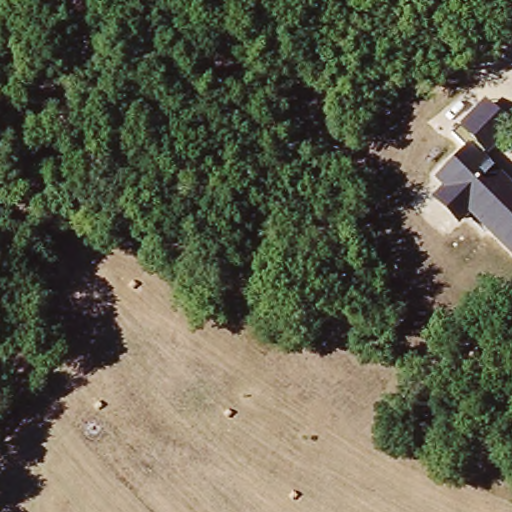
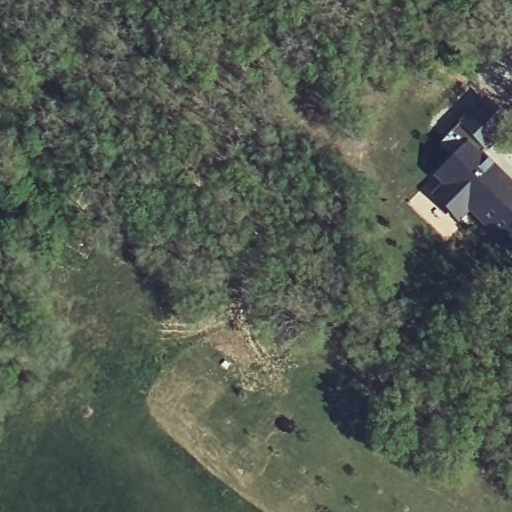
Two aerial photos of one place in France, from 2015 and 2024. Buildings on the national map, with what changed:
unchanged [(460,123),(458,122),(485,98),(512,128),(487,153),(485,151),(483,155),(512,183),(512,256),(468,213),(458,224),(430,197),(442,186),(433,177),(464,145),(451,132),(460,123)]

